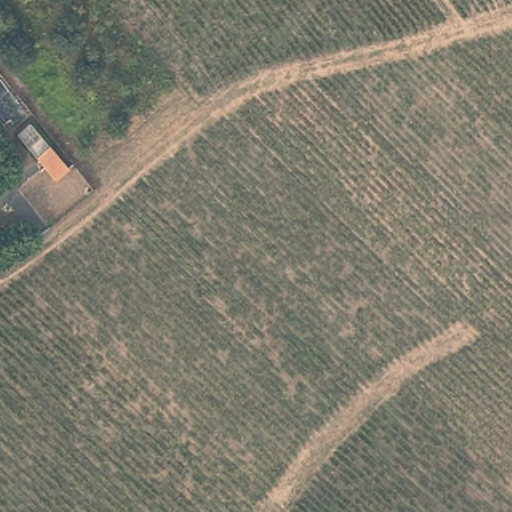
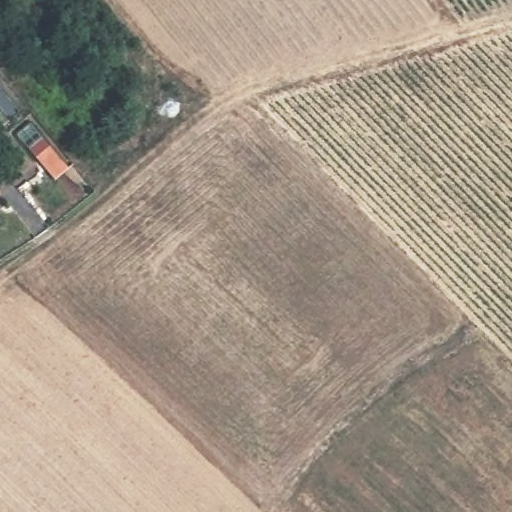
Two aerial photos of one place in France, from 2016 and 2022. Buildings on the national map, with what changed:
unchanged [(55,183),(41,164),(52,155),(67,174),(55,183)]

